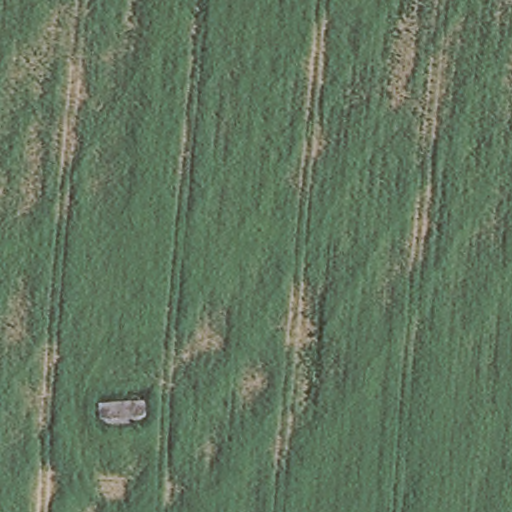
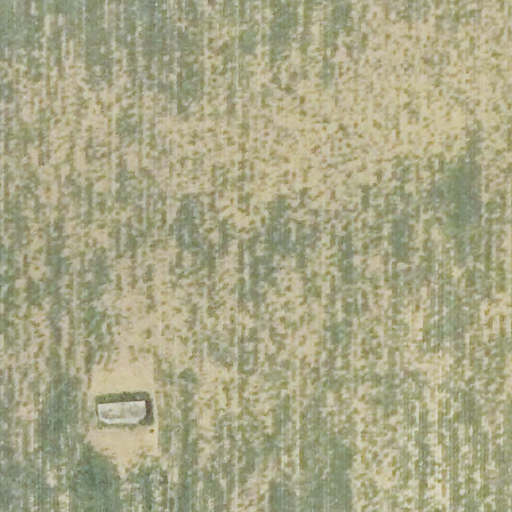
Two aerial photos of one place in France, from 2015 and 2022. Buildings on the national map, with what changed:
unchanged [(94,423),(93,397),(145,393),(148,420),(94,423)]

